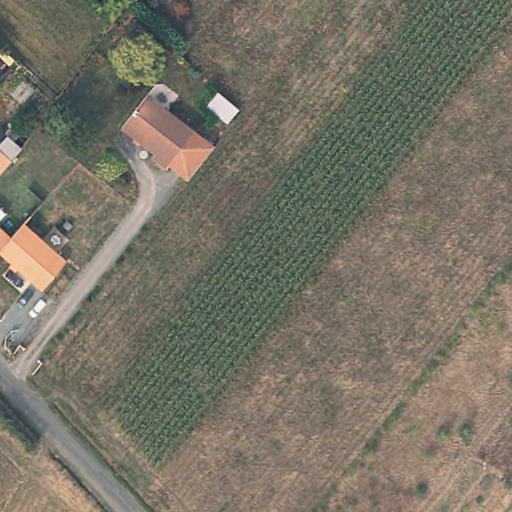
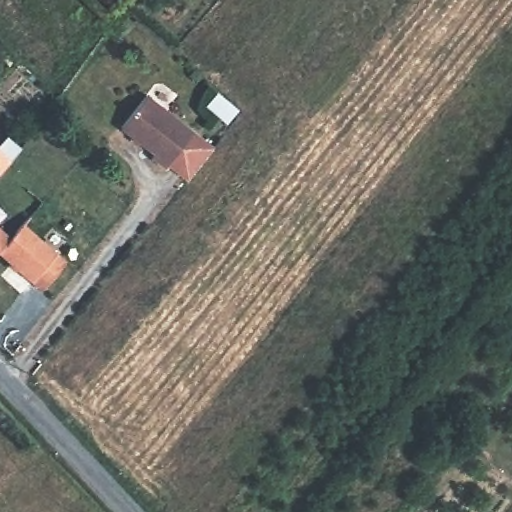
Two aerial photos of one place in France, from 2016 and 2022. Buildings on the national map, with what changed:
unchanged [(190,176),(172,161),(170,165),(154,153),(156,150),(123,124),(148,92),(215,144),(190,176)]
unchanged [(11,161),(0,175),(0,152),(11,161)]
unchanged [(12,238),(24,224),(69,260),(47,289),(1,253),(0,253),(0,227),(12,238)]

